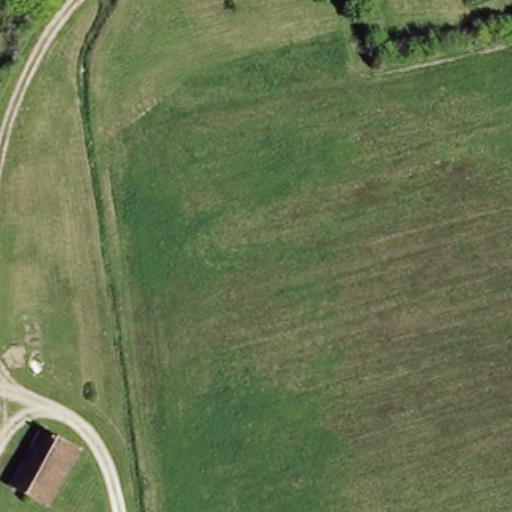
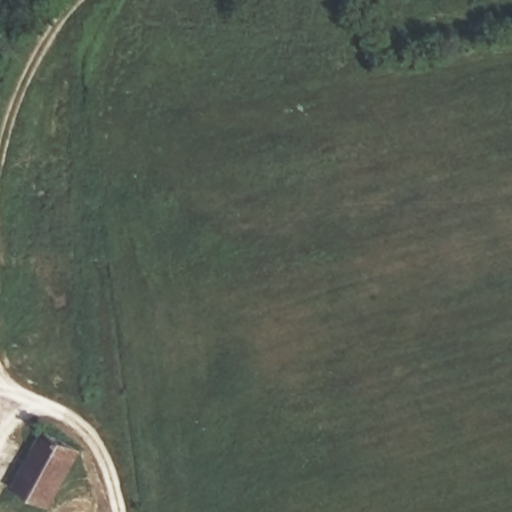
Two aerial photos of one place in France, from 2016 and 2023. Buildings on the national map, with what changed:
unchanged [(38,425),(79,447),(48,503),(8,481),(38,425)]

